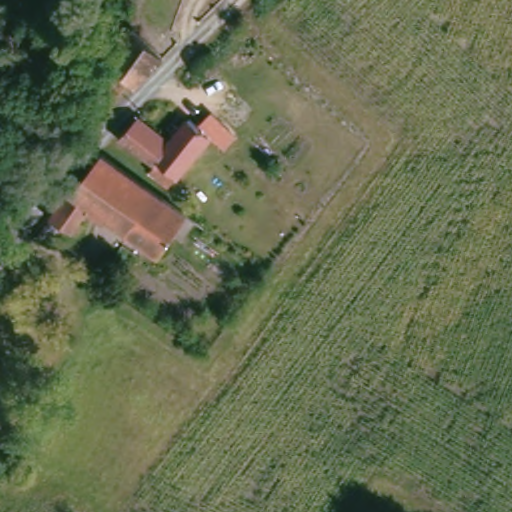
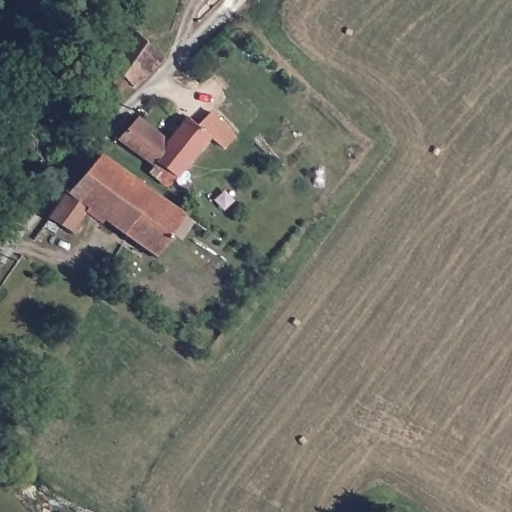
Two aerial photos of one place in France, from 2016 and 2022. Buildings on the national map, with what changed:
unchanged [(162,53),(133,82),(127,78),(117,90),(101,76),(130,23),(162,53)]
unchanged [(169,138),(153,161),(117,134),(137,113),(169,138)]
unchanged [(175,131),(171,127),(175,121),(180,124),(189,114),(211,132),(167,182),(149,167),(153,161),(169,138),(175,131)]
unchanged [(72,230),(67,227),(43,214),(57,194),(96,150),(136,179),(182,211),(189,216),(177,232),(170,227),(152,252),(85,203),(74,217),(79,220),(72,230)]

